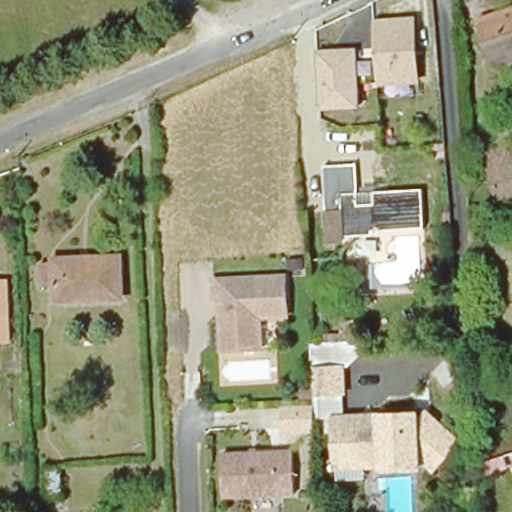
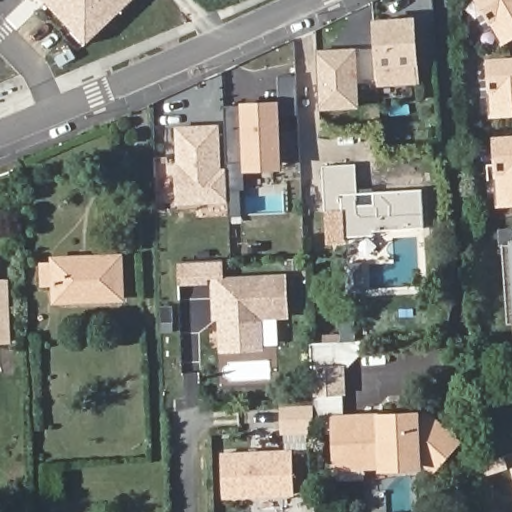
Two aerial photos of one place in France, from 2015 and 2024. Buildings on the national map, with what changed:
new [(65,24),(43,0),(132,0),(119,12),(117,10),(84,37),(79,41),(64,25),(65,24)]
new [(512,0),(512,32),(501,38),(478,0),(512,0)]
new [(475,14),(484,9),(492,23),(483,28),(475,14)]
demolished [(494,62),(480,20),(512,9),(512,56),(494,62)]
unchanged [(420,83),(378,86),(375,18),(416,16),(420,83)]
unchanged [(360,107),(321,109),(318,49),(358,47),(360,107)]
new [(487,59),(512,58),(512,110),(491,111),(487,59)]
new [(478,78),(488,78),(490,92),(480,93),(478,78)]
new [(240,102),(279,101),(282,169),(242,171),(240,102)]
new [(175,125),(220,123),(221,168),(226,167),(229,203),(177,205),(175,125)]
new [(493,136),(512,135),(512,200),(498,201),(493,136)]
demolished [(487,171),(482,155),(510,146),(512,150),(512,163),(487,171)]
new [(485,177),(485,161),(495,161),(496,176),(485,177)]
unchanged [(421,188),(423,227),(342,232),(328,233),(327,211),(323,165),(355,163),(358,203),(374,202),(373,191),(421,188)]
new [(506,321),(501,241),(500,228),(512,227),(512,321),(506,321)]
unchanged [(51,255),(119,252),(120,293),(54,296),(51,255)]
new [(224,260),(224,279),(211,279),(208,279),(207,284),(177,285),(177,262),(224,260)]
unchanged [(211,279),(282,276),(285,314),(257,316),(259,347),(220,349),(219,316),(217,297),(212,297),(211,279)]
unchanged [(10,346),(0,346),(0,283),(9,283),(10,346)]
unchanged [(340,366),(341,390),(310,392),(309,368),(340,366)]
new [(310,404),(312,429),(281,429),(280,405),(310,404)]
unchanged [(361,467),(331,469),(329,417),(365,415),(376,415),(416,412),(416,421),(427,410),(459,440),(432,467),(417,453),(418,464),(361,467)]
unchanged [(291,449),(292,492),(222,494),(221,451),(291,449)]
unchanged [(37,461),(54,460),(57,488),(72,506),(40,508),(37,461)]

